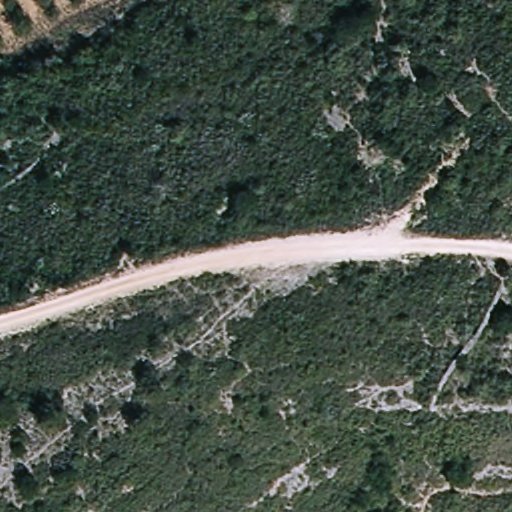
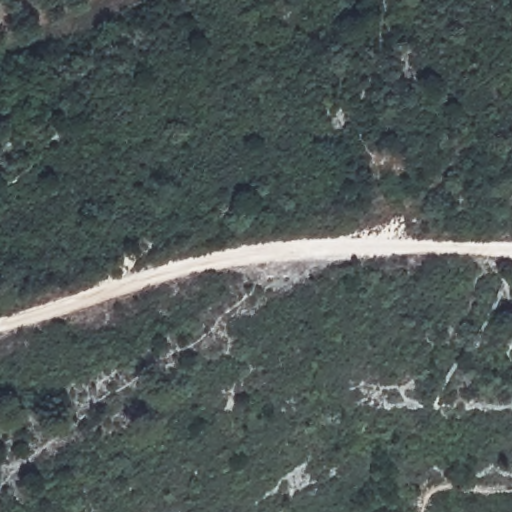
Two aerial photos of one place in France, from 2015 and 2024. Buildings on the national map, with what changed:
[]

